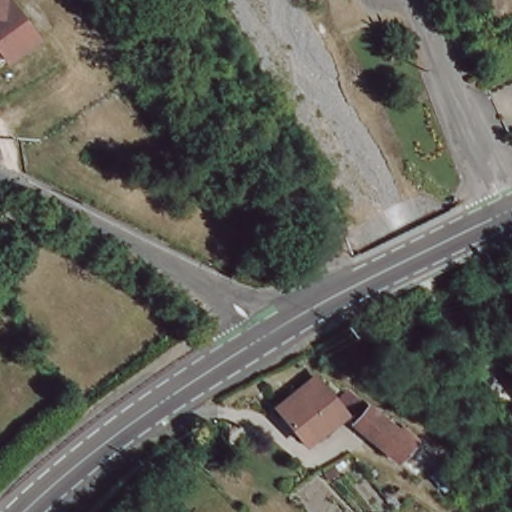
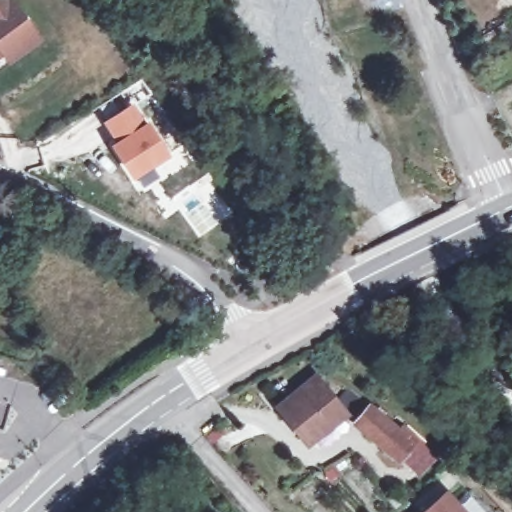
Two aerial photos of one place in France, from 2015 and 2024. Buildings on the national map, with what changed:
unchanged [(6,54),(0,47),(0,0),(12,0),(35,32),(6,54)]
unchanged [(508,12),(512,10),(512,20),(508,12)]
new [(135,101),(148,121),(171,156),(135,180),(110,145),(116,141),(103,121),(135,101)]
unchanged [(345,254),(335,260),(330,251),(340,246),(345,254)]
unchanged [(306,444),(276,407),(312,379),(341,416),(306,444)]
unchanged [(406,468),(386,448),(385,449),(344,414),(357,398),(383,420),(385,416),(401,430),(422,451),(406,468)]
new [(445,491),(464,512),(422,512),(445,491)]

